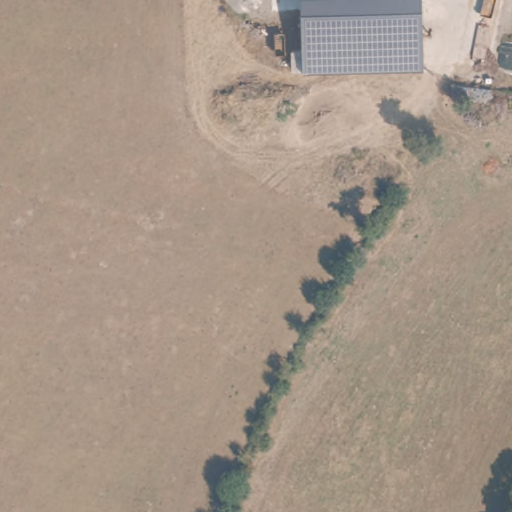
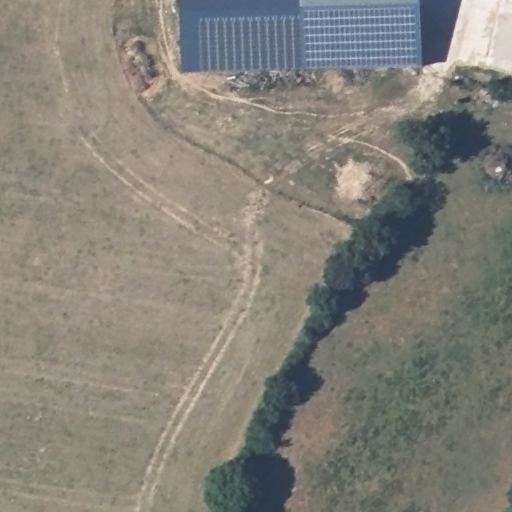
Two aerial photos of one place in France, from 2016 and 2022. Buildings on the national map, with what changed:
new [(290,50),(290,69),(180,72),(180,0),(301,0),(301,49),(290,50)]
unchanged [(290,50),(301,49),(301,0),(418,0),(424,68),(290,69),(290,50)]

